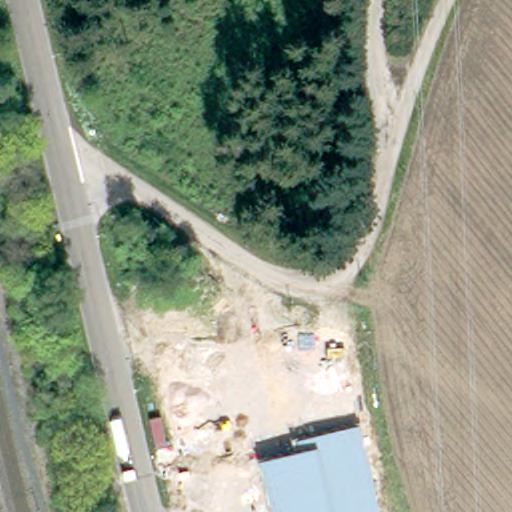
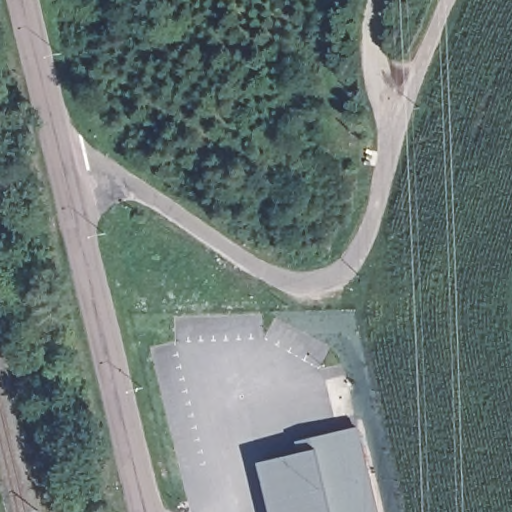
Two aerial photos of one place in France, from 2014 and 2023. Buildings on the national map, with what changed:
unchanged [(273,512),(261,462),(296,454),(294,442),(360,426),(381,512),(273,512)]

